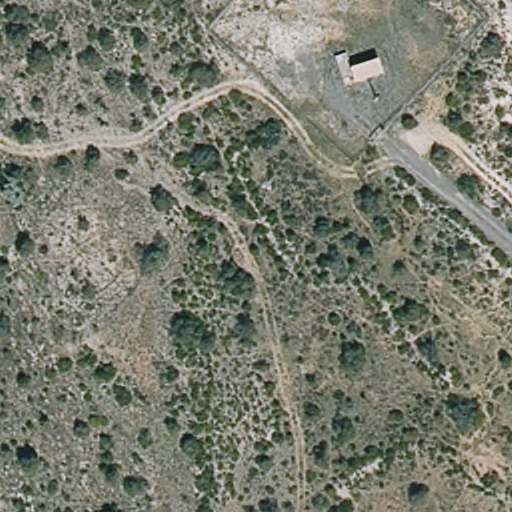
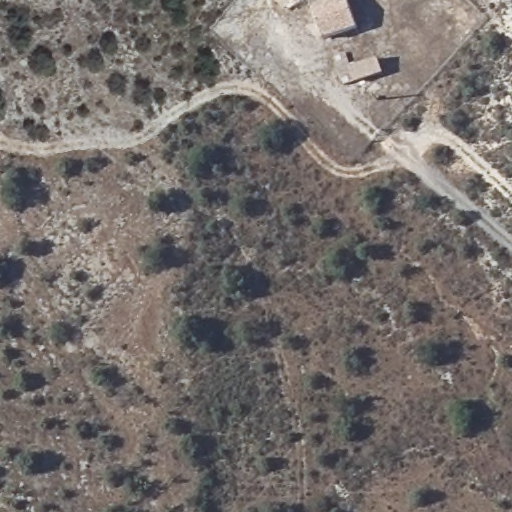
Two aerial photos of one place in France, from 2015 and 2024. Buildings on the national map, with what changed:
new [(324,40),(310,0),(348,0),(358,30),(324,40)]
unchanged [(354,84),(349,65),(379,57),(386,73),(354,84)]

